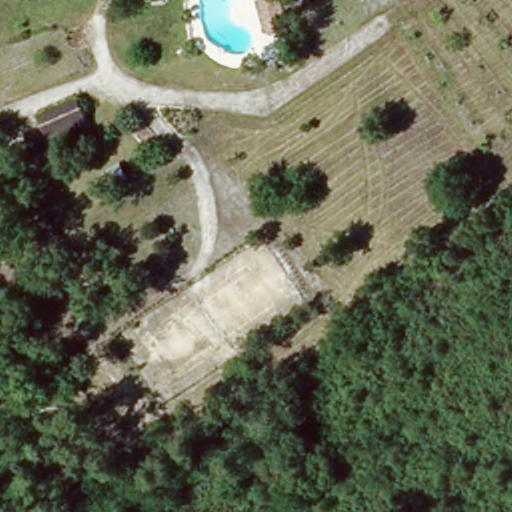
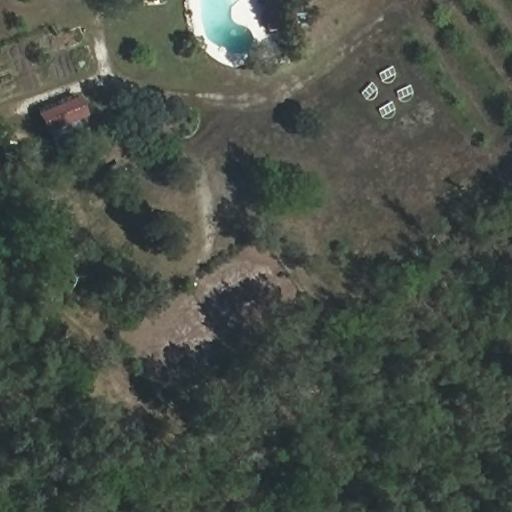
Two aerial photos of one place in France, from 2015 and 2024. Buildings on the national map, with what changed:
unchanged [(289,27),(268,33),(258,0),(282,0),(289,27)]
unchanged [(90,122),(49,138),(40,118),(79,96),(90,122)]

